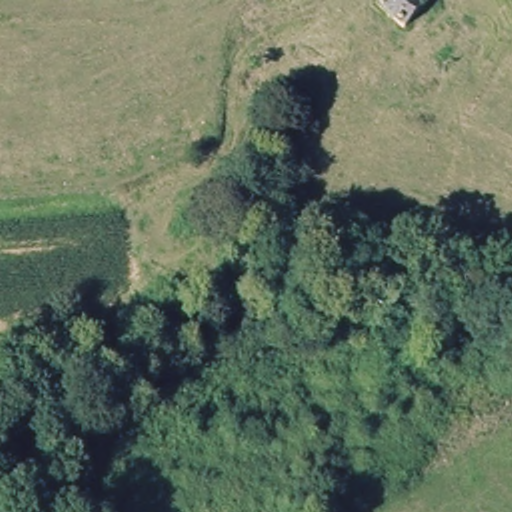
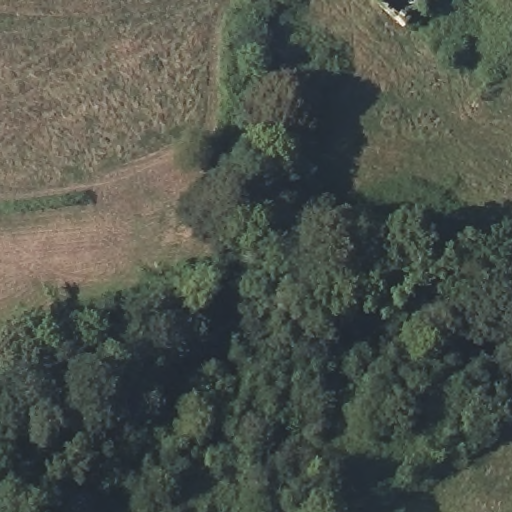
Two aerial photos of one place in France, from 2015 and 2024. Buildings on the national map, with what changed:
unchanged [(375,0),(422,0),(425,4),(430,11),(402,35),(373,1),(375,0)]

